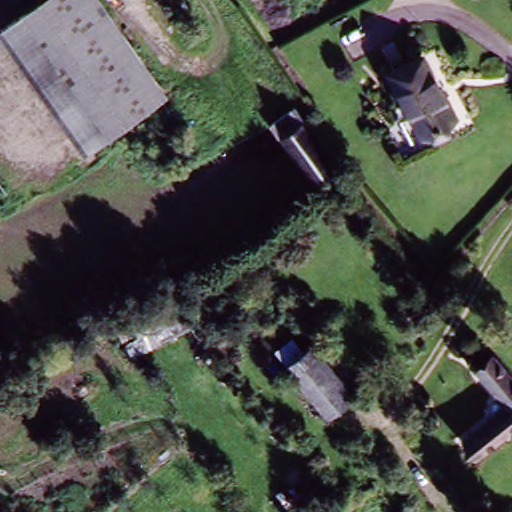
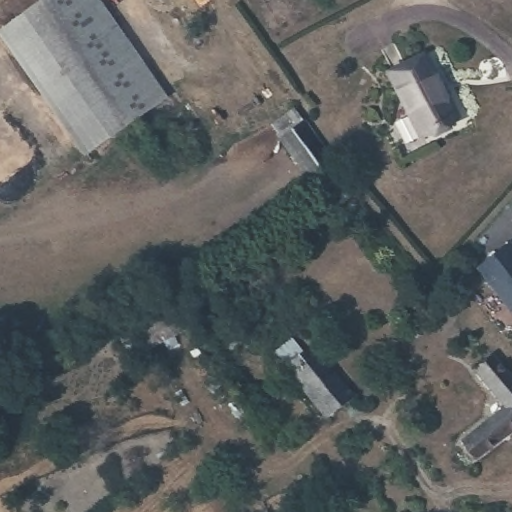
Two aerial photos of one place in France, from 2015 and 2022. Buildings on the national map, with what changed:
unchanged [(85,158),(0,35),(0,31),(41,0),(48,0),(117,113),(155,90),(167,99),(85,158)]
unchanged [(155,90),(117,113),(48,0),(104,0),(155,90)]
unchanged [(422,59),(449,127),(412,141),(385,71),(422,59)]
unchanged [(336,174),(329,178),(317,184),(283,132),(300,121),(336,174)]
new [(479,269),(510,245),(512,248),(512,313),(479,269)]
unchanged [(285,357),(310,343),(351,406),(324,419),(285,357)]
unchanged [(500,406),(480,374),(501,363),(512,381),(512,430),(467,458),(455,436),(500,406)]

